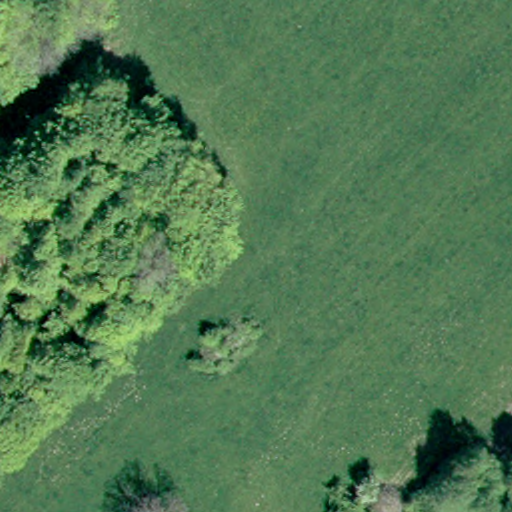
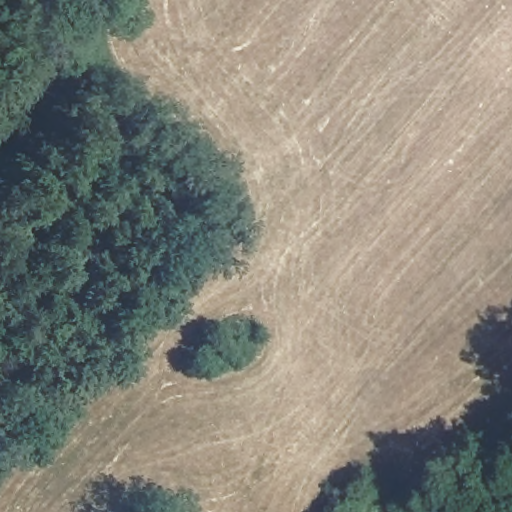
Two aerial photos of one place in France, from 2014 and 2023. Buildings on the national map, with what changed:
unchanged [(205,356),(189,342),(231,298),(247,313),(205,356)]

